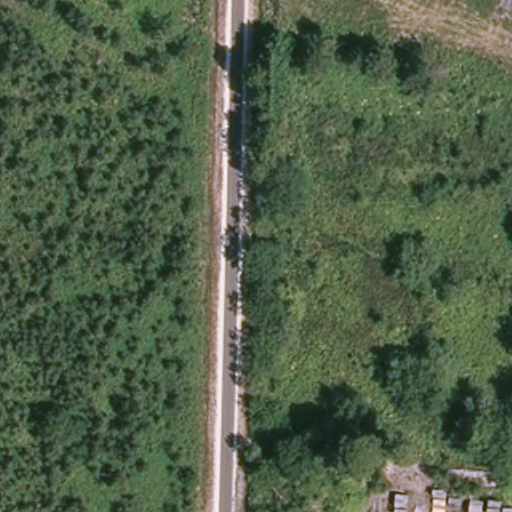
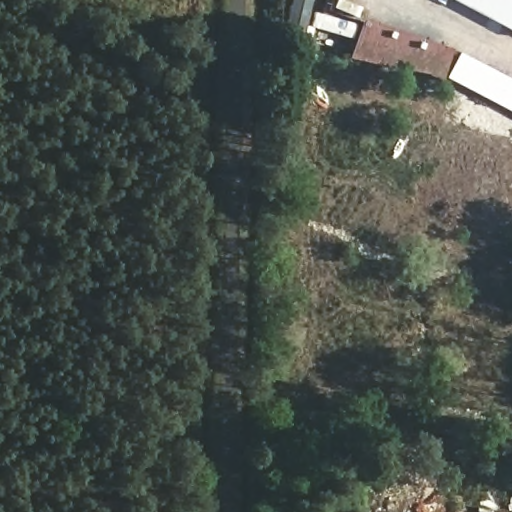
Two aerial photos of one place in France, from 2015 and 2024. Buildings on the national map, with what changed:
new [(452,0),(512,0),(512,32),(452,0)]
new [(451,49),(440,80),(421,72),(346,59),(361,18),(451,49)]
new [(457,51),(512,80),(512,115),(443,79),(457,51)]

